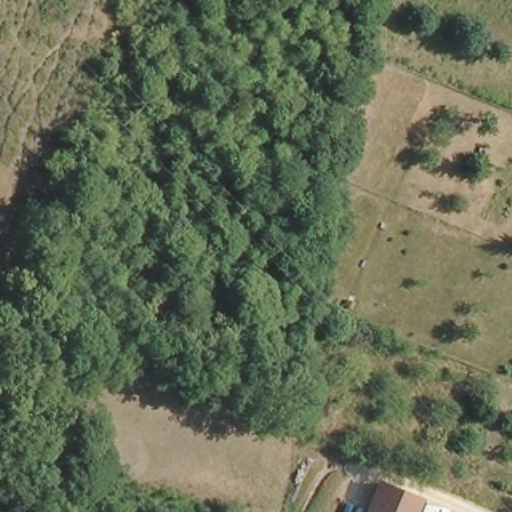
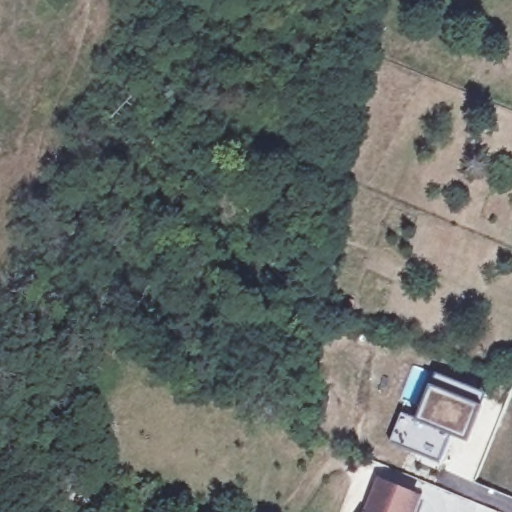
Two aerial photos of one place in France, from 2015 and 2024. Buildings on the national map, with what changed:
new [(402,414),(419,420),(437,375),(472,390),(441,466),(439,472),(410,461),(412,453),(391,444),(402,414)]
new [(512,385),(512,390),(509,397),(492,390),(497,378),(512,385)]
unchanged [(379,477),(421,497),(415,512),(365,512),(379,477)]

